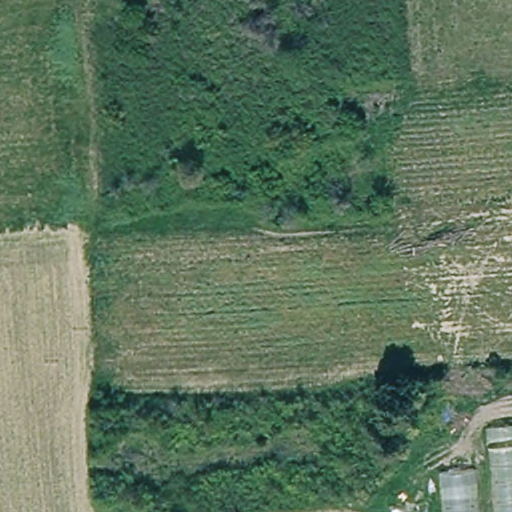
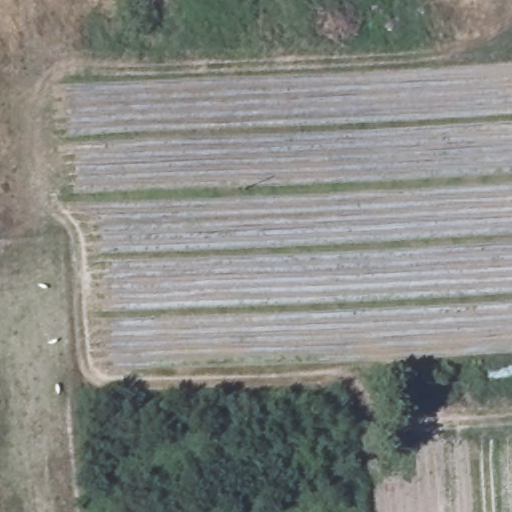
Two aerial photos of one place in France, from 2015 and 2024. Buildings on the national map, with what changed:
demolished [(485,429),(512,425),(512,512),(493,512),(485,429)]
demolished [(478,512),(442,512),(439,474),(474,469),(478,512)]
demolished [(426,512),(391,512),(390,511),(425,503),(426,512)]

